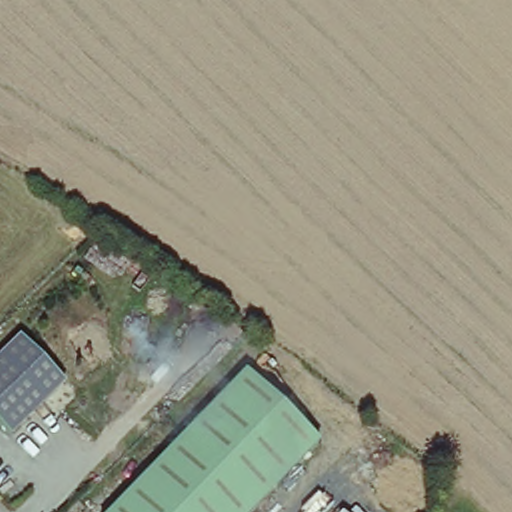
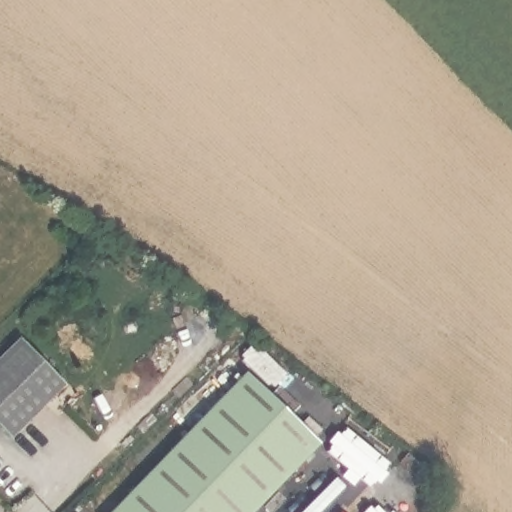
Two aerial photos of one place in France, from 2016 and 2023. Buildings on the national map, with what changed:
unchanged [(65,386),(9,435),(0,426),(0,355),(18,337),(65,386)]
unchanged [(320,440),(251,512),(111,512),(245,371),(320,440)]

